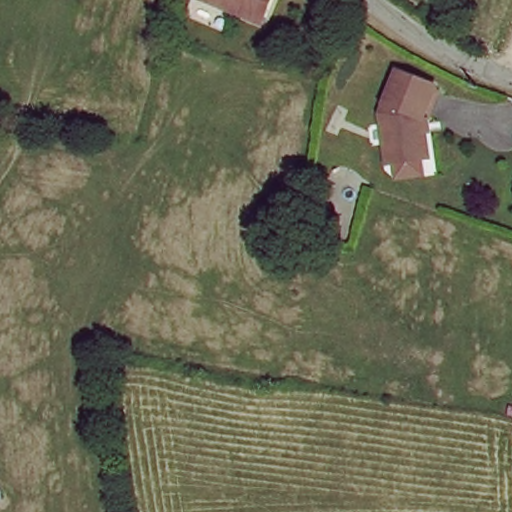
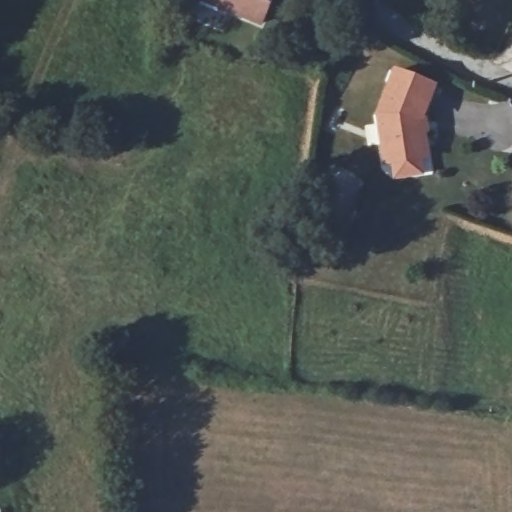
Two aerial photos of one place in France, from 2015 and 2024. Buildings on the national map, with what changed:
unchanged [(264,17),(216,0),(269,0),(264,17)]
unchanged [(392,171),(391,156),(383,157),(379,107),(399,65),(436,83),(421,115),(424,154),(416,154),(417,169),(392,171)]

